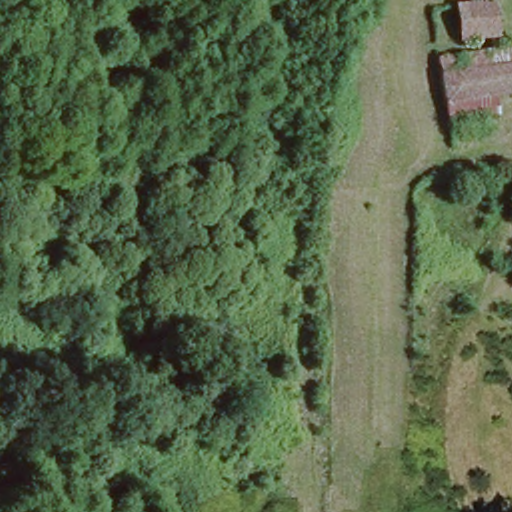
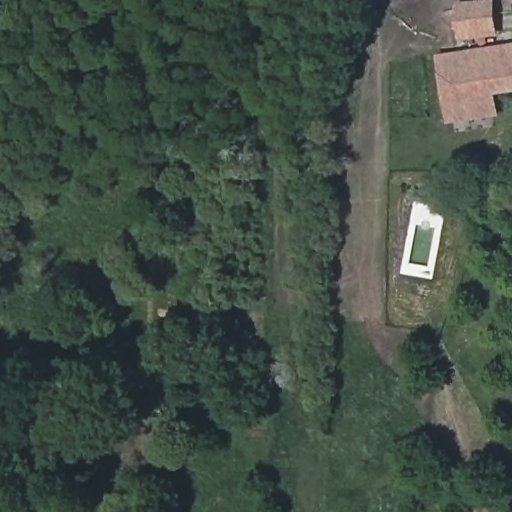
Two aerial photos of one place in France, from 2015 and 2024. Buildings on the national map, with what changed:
unchanged [(462,38),(456,0),(500,0),(504,35),(462,38)]
unchanged [(512,42),(512,90),(498,93),(501,112),(449,118),(439,53),(512,42)]

